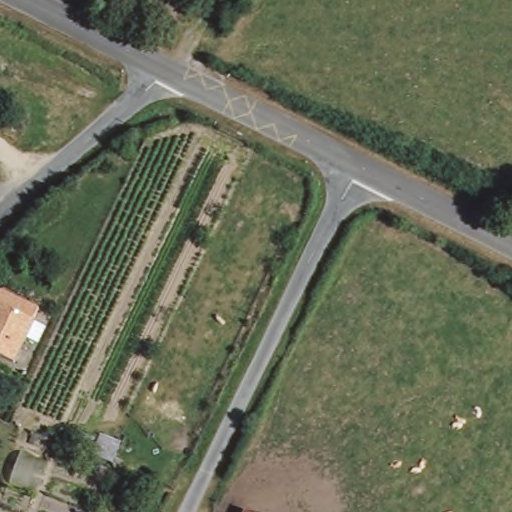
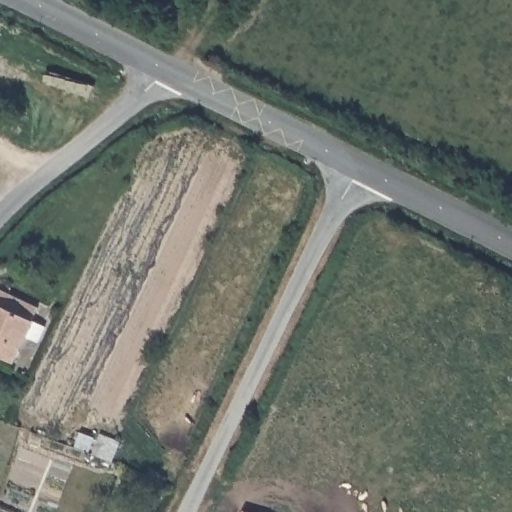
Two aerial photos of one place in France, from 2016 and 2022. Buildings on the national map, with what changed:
unchanged [(28,317),(40,322),(33,341),(23,337),(11,366),(0,362),(0,291),(34,303),(28,317)]

